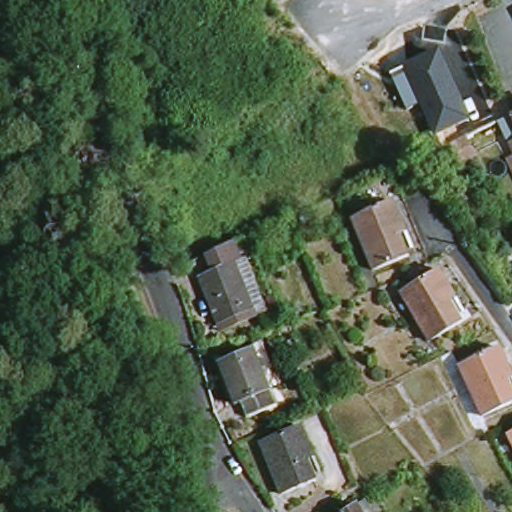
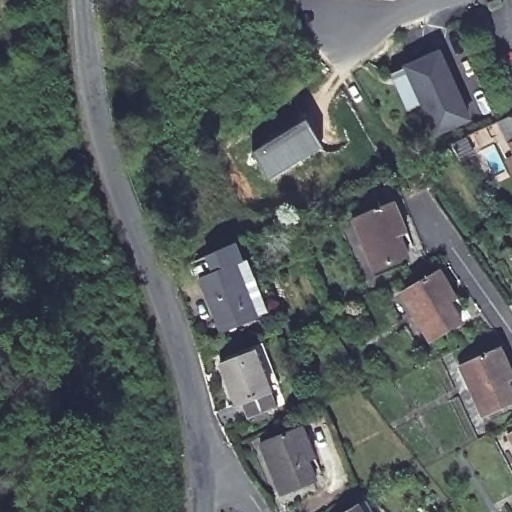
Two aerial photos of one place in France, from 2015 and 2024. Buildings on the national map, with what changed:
unchanged [(473,117),(435,136),(420,103),(408,109),(392,74),(439,50),(473,117)]
unchanged [(499,126),(512,120),(512,159),(499,126)]
new [(322,147),(269,180),(253,152),(307,121),(322,147)]
unchanged [(475,156),(461,163),(452,143),(466,137),(475,156)]
unchanged [(408,233),(401,235),(409,256),(373,270),(353,219),(396,201),(408,233)]
unchanged [(229,326),(227,320),(209,274),(218,270),(212,254),(240,243),(265,305),(269,311),(229,326)]
unchanged [(458,298),(451,302),(463,323),(429,342),(399,293),(439,268),(458,298)]
unchanged [(512,370),(512,380),(509,380),(512,388),(512,403),(482,416),(459,366),(502,347),(512,370)]
unchanged [(272,392),(276,406),(248,417),(243,403),(237,406),(220,364),(255,351),(272,392)]
unchanged [(315,457),(309,460),(316,480),(280,495),(260,444),(303,426),(315,457)]
unchanged [(502,440),(512,435),(512,459),(502,440)]
unchanged [(368,512),(353,512),(364,505),(368,512)]

